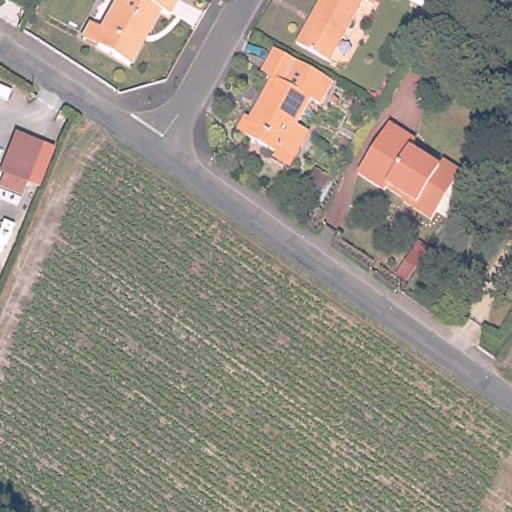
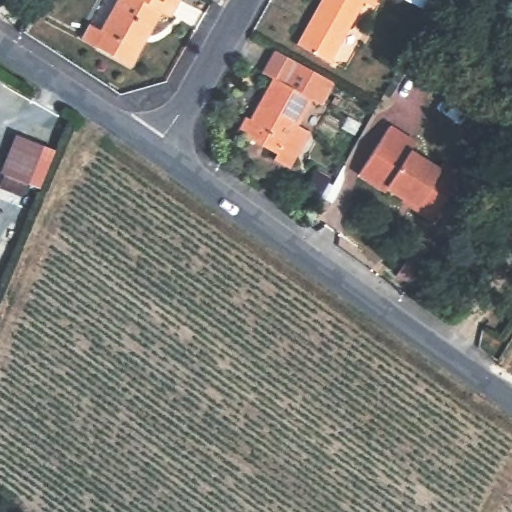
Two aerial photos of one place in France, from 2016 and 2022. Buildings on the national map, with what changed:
unchanged [(120,0),(181,0),(175,11),(166,6),(136,61),(102,42),(87,34),(96,19),(107,25),(120,0)]
unchanged [(366,0),(335,57),(302,39),(313,19),(318,10),(324,0),(366,0)]
unchanged [(410,1),(410,0),(435,0),(428,11),(410,1)]
unchanged [(322,105),(312,99),(298,125),(311,132),(291,168),(275,159),(277,154),(238,132),(247,117),(251,119),(274,77),(263,72),(276,49),(297,62),(335,82),(322,105)]
unchanged [(416,146),(444,164),(448,158),(467,169),(437,215),(418,203),(422,199),(412,193),(411,195),(392,184),(391,187),(363,169),(395,121),(421,137),(416,146)]
unchanged [(26,181),(3,172),(18,135),(41,144),(26,181)]
unchanged [(317,200),(303,193),(317,170),(330,178),(317,200)]
unchanged [(428,248),(407,281),(396,274),(402,266),(403,267),(410,258),(408,256),(418,241),(428,248)]

